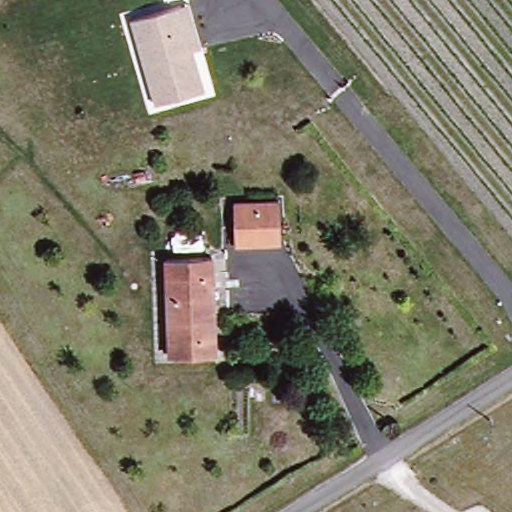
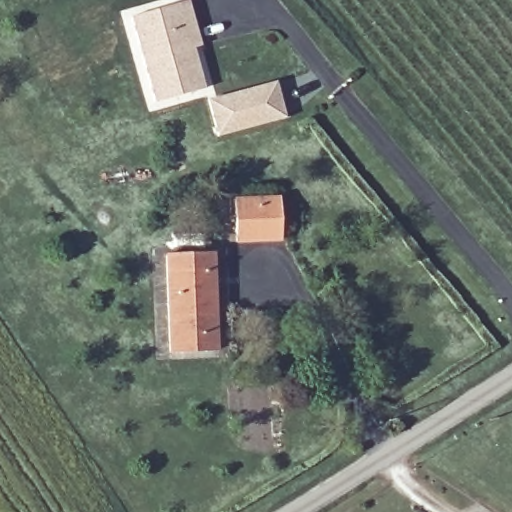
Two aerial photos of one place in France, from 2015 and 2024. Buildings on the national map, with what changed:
unchanged [(159,102),(134,16),(178,3),(193,1),(206,45),(199,46),(209,89),(159,102)]
new [(287,119),(220,137),(210,100),(278,82),(287,119)]
unchanged [(231,240),(231,199),(275,200),(275,241),(231,240)]
unchanged [(166,350),(164,256),(213,255),(215,350),(166,350)]

